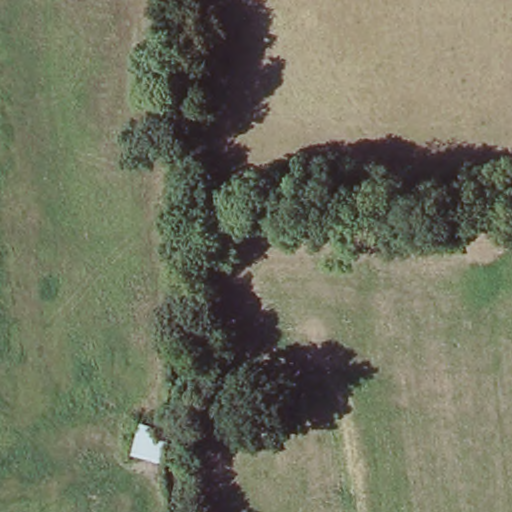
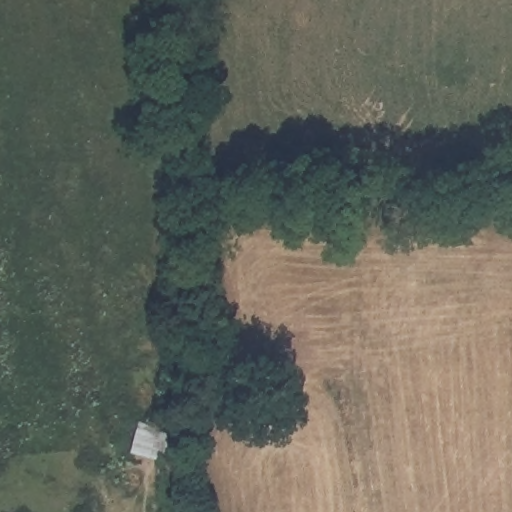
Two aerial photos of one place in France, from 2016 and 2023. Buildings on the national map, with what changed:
unchanged [(127,456),(137,423),(173,434),(166,462),(127,456)]

